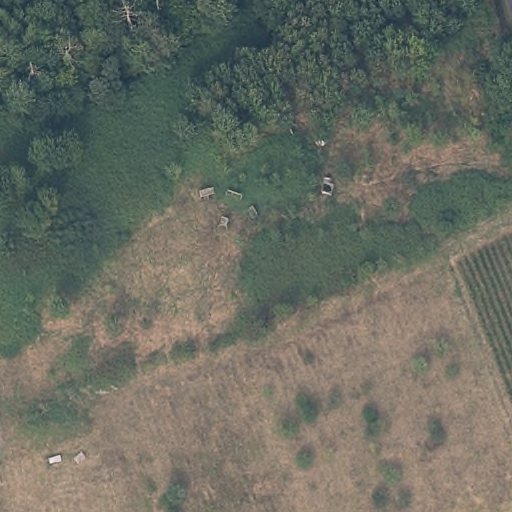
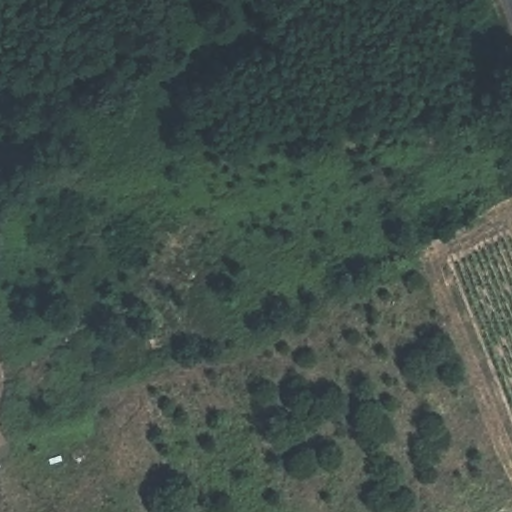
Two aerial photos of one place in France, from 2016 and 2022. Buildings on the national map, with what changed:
[]

